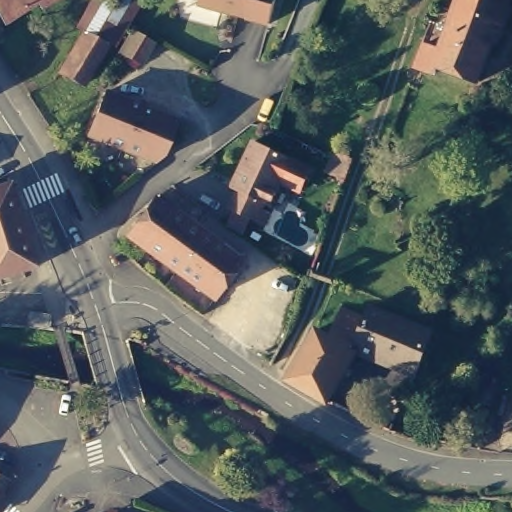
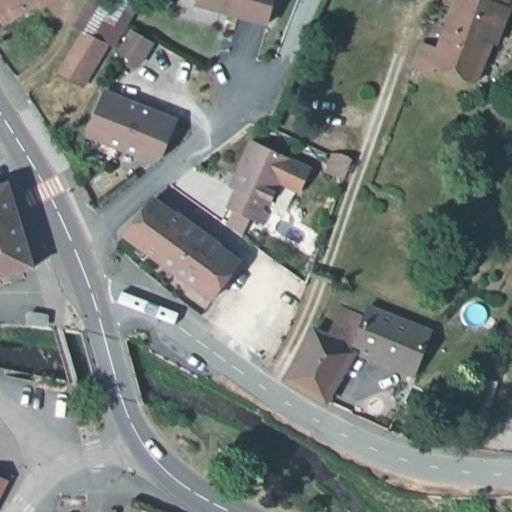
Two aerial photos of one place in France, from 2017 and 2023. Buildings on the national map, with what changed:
unchanged [(5,22),(0,14),(0,0),(37,0),(5,22)]
unchanged [(103,63),(96,59),(70,101),(50,89),(75,46),(68,41),(91,0),(98,0),(129,17),(103,63)]
unchanged [(118,9),(102,0),(123,0),(118,9)]
unchanged [(265,21),(194,2),(195,0),(271,0),(265,21)]
unchanged [(442,46),(458,0),(508,0),(504,14),(492,45),(478,78),(436,64),(433,69),(416,63),(424,41),(442,46)]
unchanged [(151,44),(138,66),(114,52),(128,31),(151,44)]
unchanged [(90,133),(107,92),(176,119),(160,161),(90,133)]
unchanged [(264,221),(257,218),(228,205),(236,187),(233,185),(253,140),(291,157),(271,202),(264,199),(261,207),(269,210),(264,221)]
unchanged [(0,281),(0,187),(8,184),(35,270),(0,281)]
unchanged [(183,221),(189,212),(201,221),(196,230),(236,260),(208,298),(123,237),(152,199),(183,221)]
unchanged [(315,327),(329,334),(343,307),(366,316),(371,304),(433,328),(416,370),(357,348),(327,398),(291,377),(288,375),(315,327)]
unchanged [(48,330),(29,330),(30,319),(50,320),(48,330)]
unchanged [(3,477),(0,483),(0,476),(3,477)]

